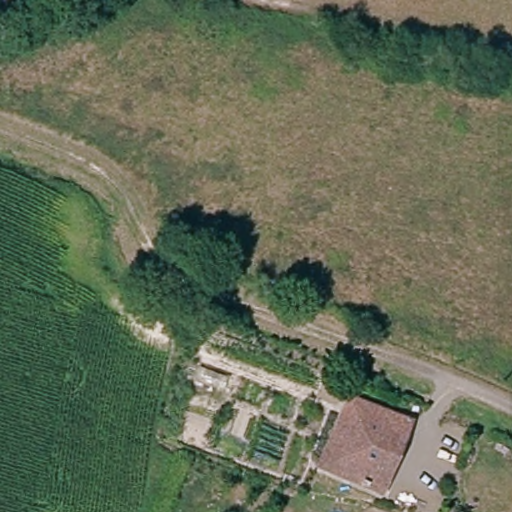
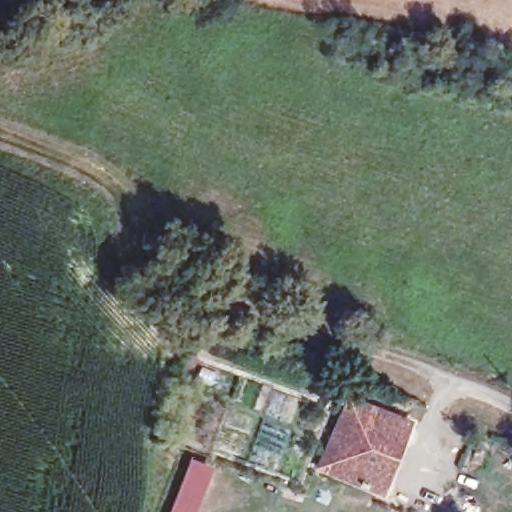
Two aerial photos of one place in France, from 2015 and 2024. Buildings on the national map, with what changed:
unchanged [(318,466),(345,389),(409,415),(379,489),(352,479),(318,466)]
new [(170,512),(192,457),(215,466),(197,512),(170,512)]

